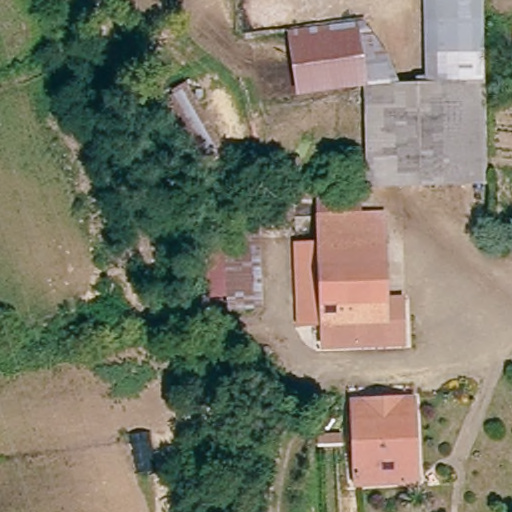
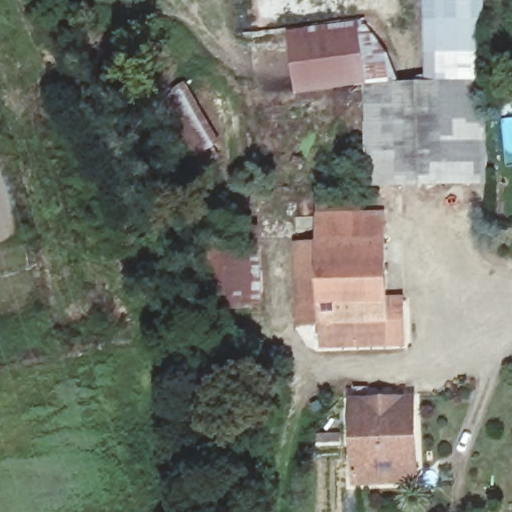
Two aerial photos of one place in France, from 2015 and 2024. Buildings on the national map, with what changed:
unchanged [(481,0),(481,88),(473,89),(456,89),(416,90),(416,0),(481,0)]
unchanged [(293,97),(290,28),(365,24),(373,38),(390,62),(396,91),(361,91),(293,97)]
unchanged [(156,104),(183,86),(219,146),(195,166),(156,104)]
unchanged [(481,88),(480,183),(427,185),(426,185),(361,186),(361,91),(396,91),(416,90),(456,89),(473,89),(481,88)]
unchanged [(316,218),(384,217),(384,247),(316,246),(316,218)]
unchanged [(218,222),(256,221),(257,313),(217,314),(218,222)]
unchanged [(405,327),(405,350),(318,351),(318,329),(295,328),(295,246),(316,246),(384,247),(385,300),(405,301),(405,327)]
unchanged [(415,465),(354,468),(353,445),(354,408),(415,405),(415,440),(415,465)]
unchanged [(415,465),(415,484),(355,488),(354,468),(415,465)]

